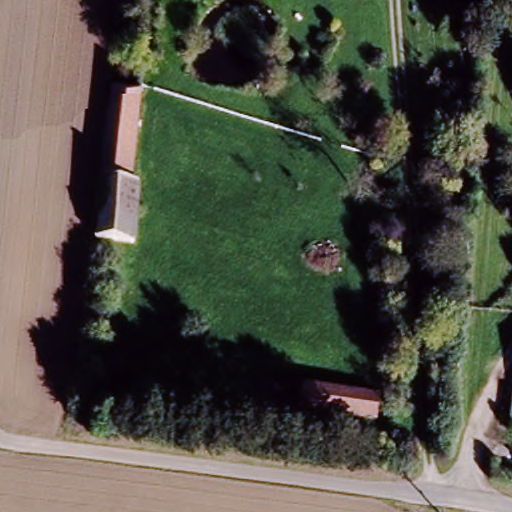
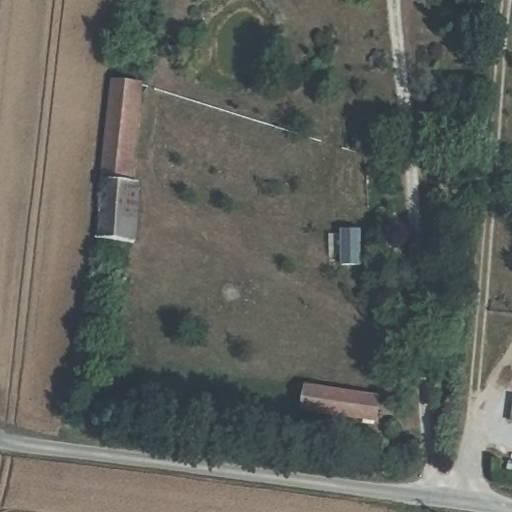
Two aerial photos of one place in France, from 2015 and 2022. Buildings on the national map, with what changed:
unchanged [(102,89),(135,92),(127,182),(138,184),(129,287),(85,282),(102,89)]
unchanged [(293,439),(297,415),(297,385),(379,394),(376,425),(324,418),(322,444),(293,439)]

